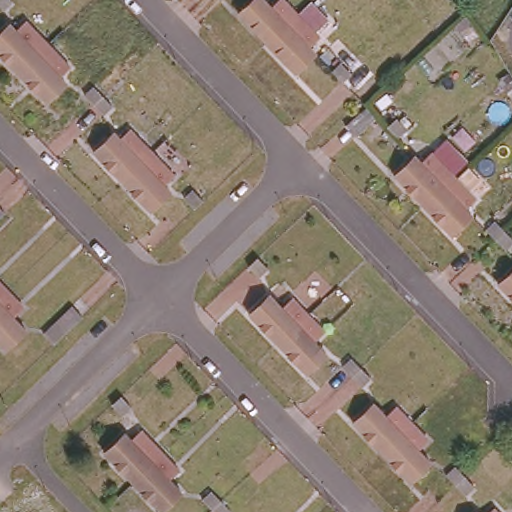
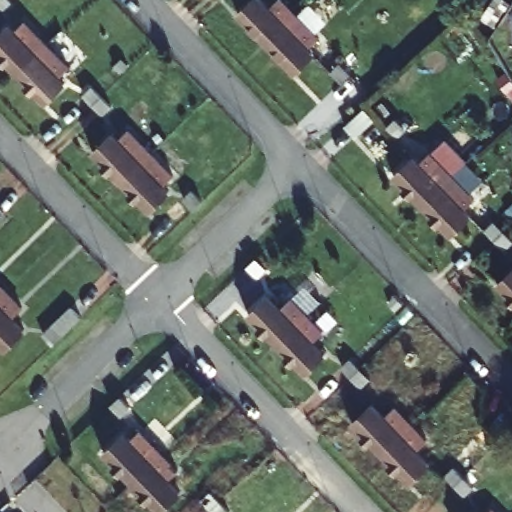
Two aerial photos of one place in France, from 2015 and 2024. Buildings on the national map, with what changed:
unchanged [(6,0),(10,4),(0,12),(0,11),(0,0),(6,0)]
unchanged [(242,12),(255,0),(268,0),(273,6),(280,0),(288,0),(299,13),(270,41),(242,12)]
unchanged [(511,0),(512,0),(512,1),(510,1),(511,0)]
unchanged [(270,41),(299,13),(315,30),(305,40),(316,52),(297,70),(270,41)]
unchanged [(0,64),(0,29),(3,26),(8,32),(19,22),(42,45),(11,75),(0,64)]
unchanged [(42,45),(65,68),(54,78),(60,84),(40,104),(11,75),(42,45)]
unchanged [(348,73),(339,81),(330,72),(339,64),(348,73)]
unchanged [(101,113),(93,104),(85,95),(95,85),(103,94),(112,103),(101,113)]
unchanged [(368,113),(377,124),(358,143),(348,132),(368,113)]
unchanged [(114,182),(86,153),(107,133),(112,139),(123,129),(145,152),(114,182)]
unchanged [(422,202),(394,173),(414,153),(420,160),(430,150),(453,173),(422,202)]
unchanged [(145,152),(167,176),(157,186),(162,192),(142,211),(114,182),(145,152)]
unchanged [(475,195),(465,205),(471,212),(450,231),(422,202),(453,173),(475,195)]
unchanged [(191,190),(201,200),(192,209),(182,198),(191,190)]
unchanged [(6,208),(0,214),(0,202),(6,208)]
unchanged [(496,238),(487,228),(496,219),(505,229),(512,236),(512,241),(505,248),(496,238)]
unchanged [(254,258),(258,263),(263,268),(255,276),(250,271),(245,267),(254,258)]
unchanged [(512,264),(512,301),(493,282),(512,264)]
unchanged [(6,293),(0,298),(0,285),(6,293)]
unchanged [(6,293),(23,310),(13,319),(25,332),(3,351),(0,347),(0,298),(6,293)]
unchanged [(250,315),(270,295),(282,307),(293,297),(310,314),(279,344),(250,315)]
unchanged [(79,320),(58,339),(50,347),(40,337),(50,328),(70,310),(79,320)]
unchanged [(310,314),(326,330),(315,341),(327,353),(308,373),(279,344),(310,314)]
unchanged [(361,387),(351,377),(341,368),(350,359),(360,369),(370,378),(361,387)]
unchanged [(130,407),(120,416),(110,406),(120,397),(130,407)]
unchanged [(380,452),(352,422),(373,403),(385,415),(395,406),(411,422),(380,452)]
unchanged [(411,422),(428,440),(417,450),(430,462),(408,481),(380,452),(411,422)]
unchanged [(104,454),(125,434),(130,440),(140,430),(162,453),(131,482),(104,454)]
unchanged [(162,453),(178,470),(168,480),(180,492),(160,511),(131,482),(162,453)]
unchanged [(463,494),(453,484),(444,475),(452,466),(462,476),(472,485),(463,494)]
unchanged [(202,499),(211,491),(220,501),(211,510),(202,499)]
unchanged [(492,507),(497,512),(486,512),(492,507)]
unchanged [(476,510),(478,512),(474,512),(476,510)]

